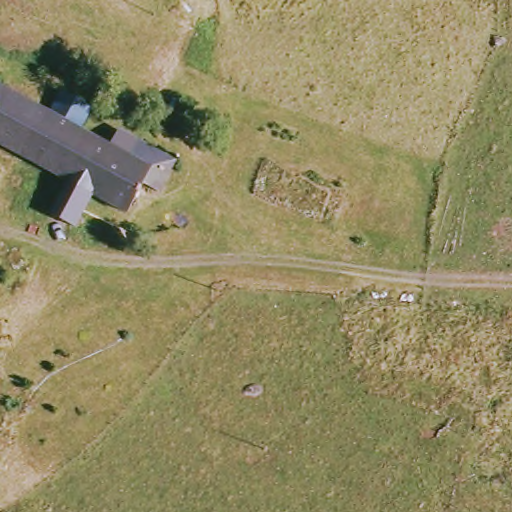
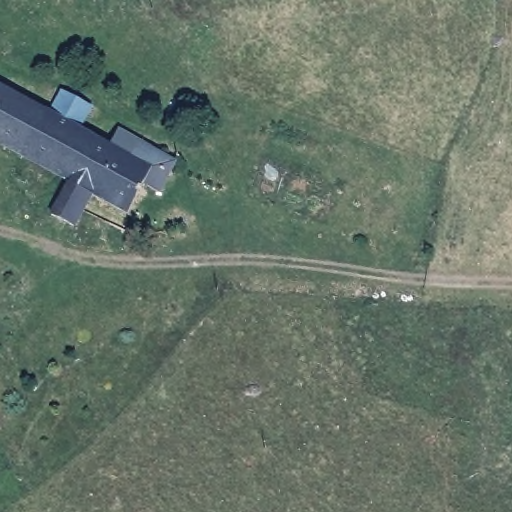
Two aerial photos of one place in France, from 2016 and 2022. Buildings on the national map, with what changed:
unchanged [(99,195),(81,228),(60,216),(76,183),(0,141),(0,84),(2,80),(58,110),(72,88),(101,104),(100,107),(88,128),(138,154),(149,140),(186,159),(167,192),(153,184),(135,214),(99,195)]

